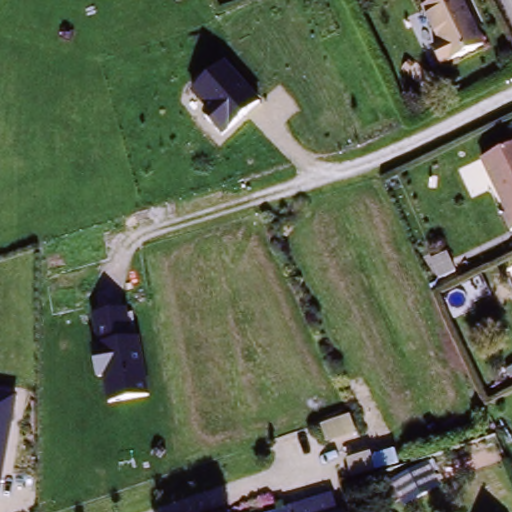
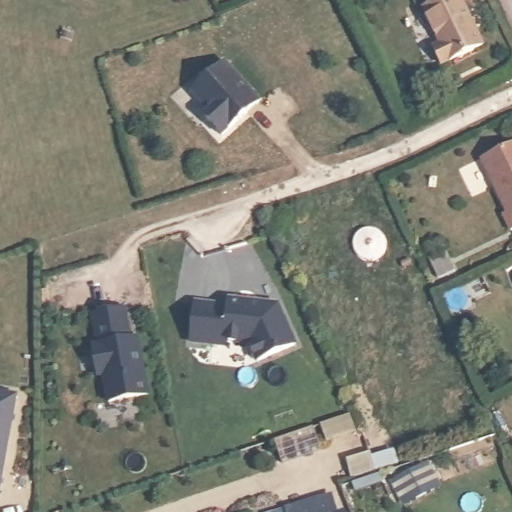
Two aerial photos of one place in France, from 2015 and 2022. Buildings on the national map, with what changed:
unchanged [(460,0),(467,14),(463,15),(468,26),(472,24),(479,41),(439,61),(431,44),(438,40),(421,5),(432,0),(460,0)]
unchanged [(223,139),(202,116),(208,110),(191,92),(224,63),(261,103),(223,139)]
unchanged [(501,214),(506,211),(481,155),(512,141),(512,228),(509,229),(501,214)]
new [(197,304),(230,307),(231,300),(263,303),(263,309),(269,309),(279,304),(298,343),(259,361),(252,344),(228,343),(228,347),(194,344),(197,304)]
unchanged [(129,309),(134,339),(140,338),(153,396),(108,407),(102,381),(98,382),(91,348),(98,346),(91,317),(129,309)]
unchanged [(0,486),(0,394),(15,396),(0,486)]
new [(315,426),(320,440),(283,453),(278,438),(315,426)]
unchanged [(440,483),(406,502),(394,479),(428,459),(440,483)]
unchanged [(309,504),(329,497),(334,512),(311,512),(309,504)]

